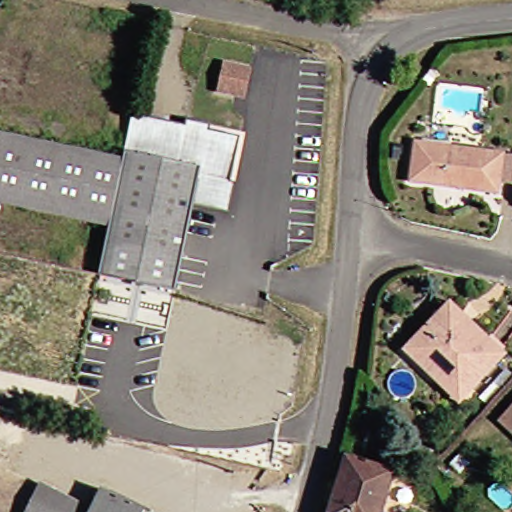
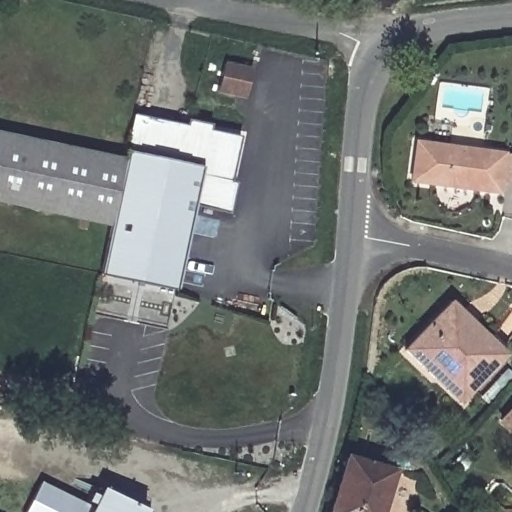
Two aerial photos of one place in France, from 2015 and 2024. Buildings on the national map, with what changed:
unchanged [(242,94),(234,92),(216,89),(221,61),(239,65),(248,67),(242,94)]
unchanged [(236,181),(230,211),(194,204),(177,288),(146,282),(99,272),(109,224),(123,160),(133,113),(185,124),(187,118),(210,123),(209,129),(226,132),(240,135),(235,162),(231,180),(236,181)]
unchanged [(0,202),(0,136),(123,160),(109,224),(0,202)]
unchanged [(497,192),(411,181),(415,142),(504,152),(503,156),(512,157),(512,182),(499,181),(497,192)]
unchanged [(439,373),(432,380),(403,352),(439,315),(448,305),(483,337),(504,357),(465,398),(439,373)]
unchanged [(512,409),(512,432),(500,421),(512,409)]
unchanged [(347,457),(392,471),(380,512),(331,512),(347,457)]
unchanged [(36,485),(90,511),(100,491),(141,511),(144,512),(23,512),(36,485)]

